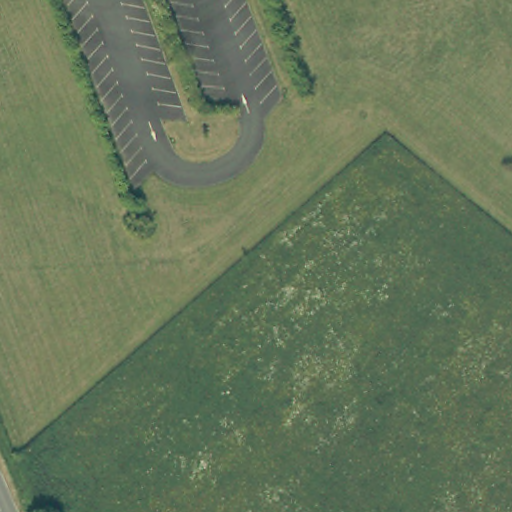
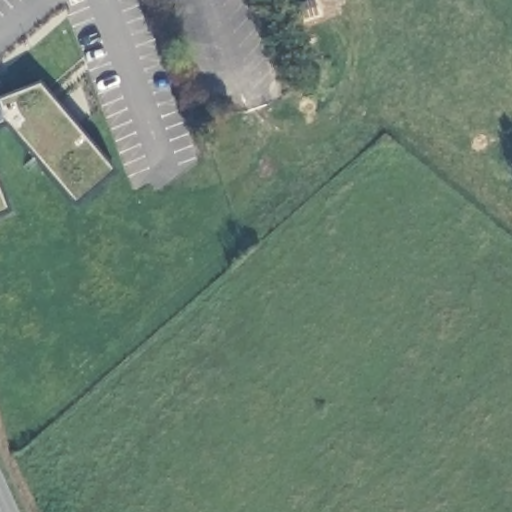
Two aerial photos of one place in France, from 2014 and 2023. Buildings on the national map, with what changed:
new [(76,205),(7,127),(0,129),(0,98),(42,84),(116,170),(76,205)]
new [(10,212),(0,215),(0,186),(10,212)]

